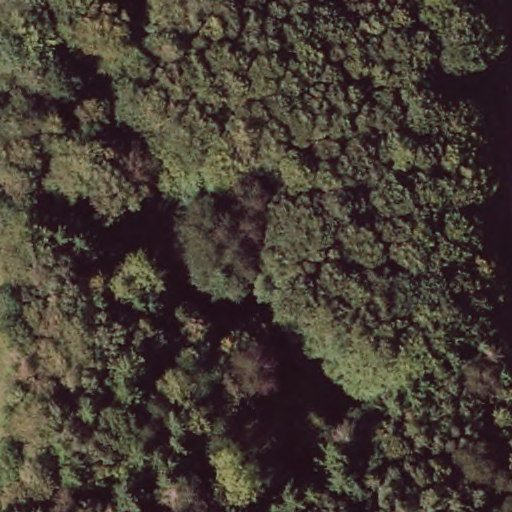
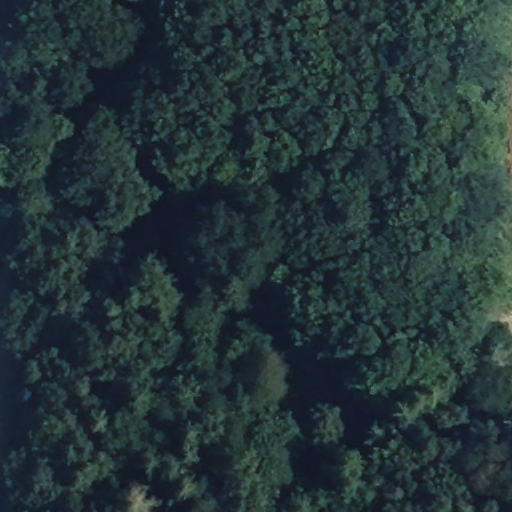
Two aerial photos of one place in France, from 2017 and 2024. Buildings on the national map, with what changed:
unchanged [(347,365),(300,400),(272,361),(317,328),(347,365)]

